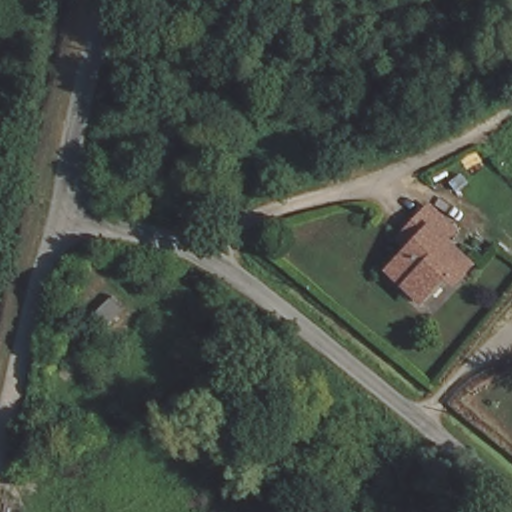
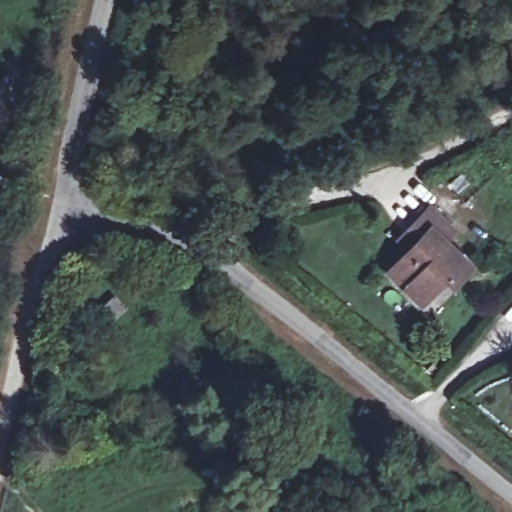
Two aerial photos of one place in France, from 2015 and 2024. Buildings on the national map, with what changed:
unchanged [(453,240),(444,250),(470,275),(453,291),(445,282),(420,307),(390,276),(410,257),(400,246),(411,236),(432,217),(453,240)]

